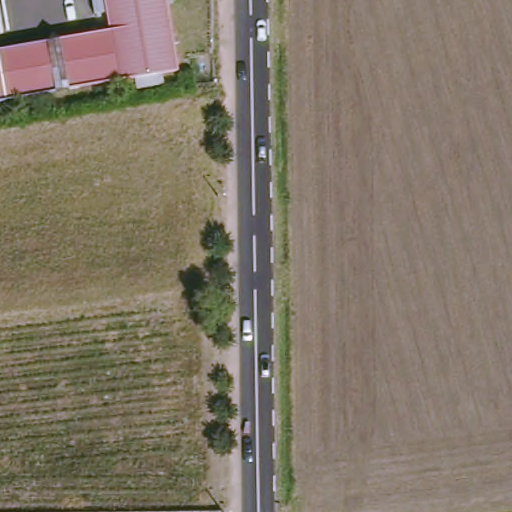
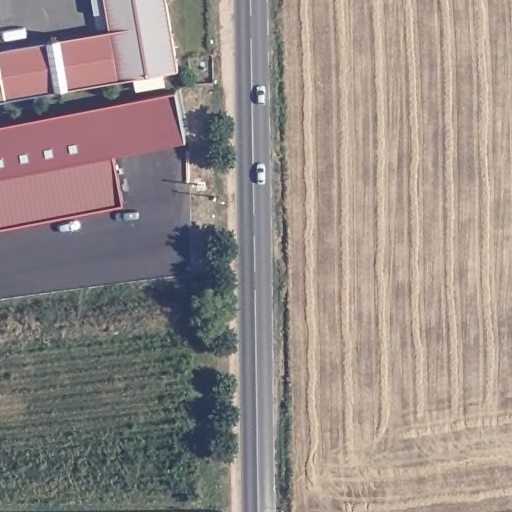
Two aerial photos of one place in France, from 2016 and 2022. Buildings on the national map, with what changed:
unchanged [(162,0),(175,71),(116,81),(107,25),(103,0),(162,0)]
unchanged [(68,90),(57,34),(107,25),(116,81),(68,90)]
unchanged [(57,34),(68,90),(51,94),(2,102),(0,89),(0,45),(40,37),(57,34)]
unchanged [(2,102),(0,102),(0,89),(2,102)]
new [(182,154),(115,157),(123,211),(0,232),(0,128),(174,96),(182,154)]

